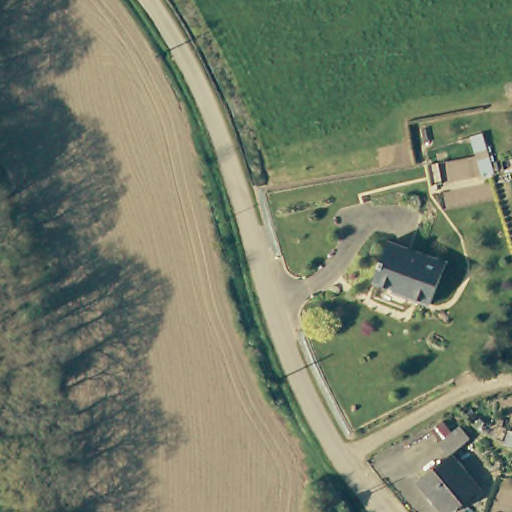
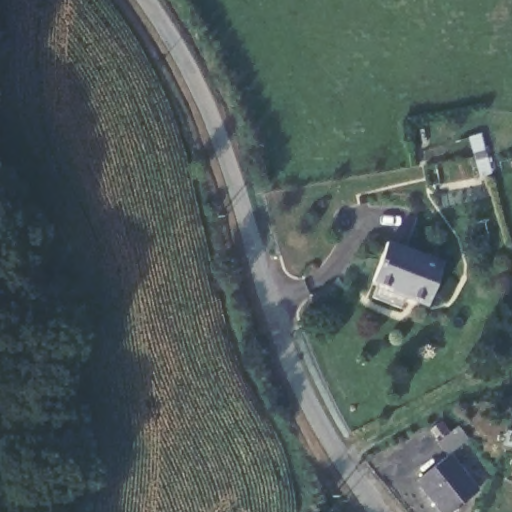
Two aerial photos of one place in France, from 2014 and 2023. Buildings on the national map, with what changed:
unchanged [(439,261),(426,299),(377,282),(390,244),(439,261)]
unchanged [(452,512),(440,512),(439,510),(418,479),(451,456),(454,453),(481,492),(452,512)]

